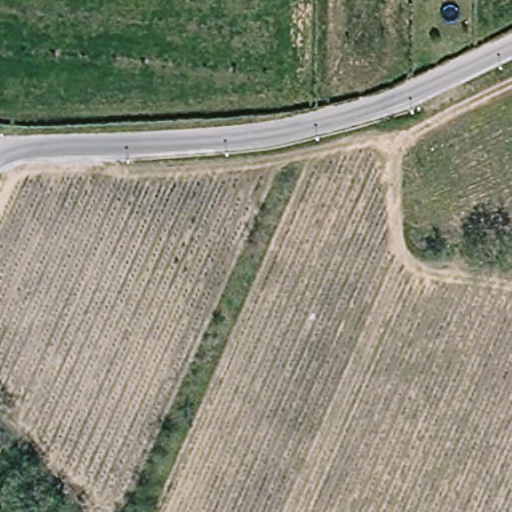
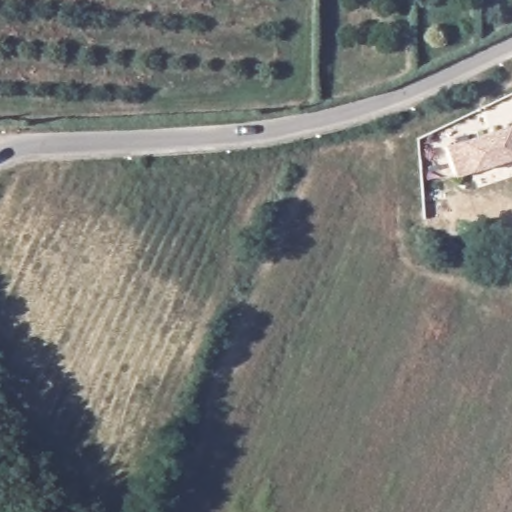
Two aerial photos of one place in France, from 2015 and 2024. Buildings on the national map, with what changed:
new [(457,179),(446,147),(463,141),(512,125),(512,160),(472,173),(457,179)]

